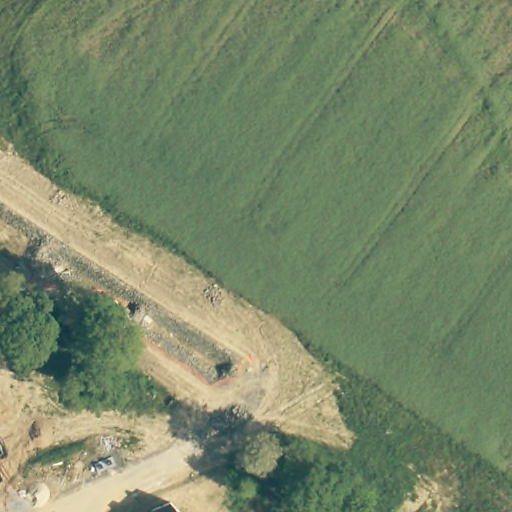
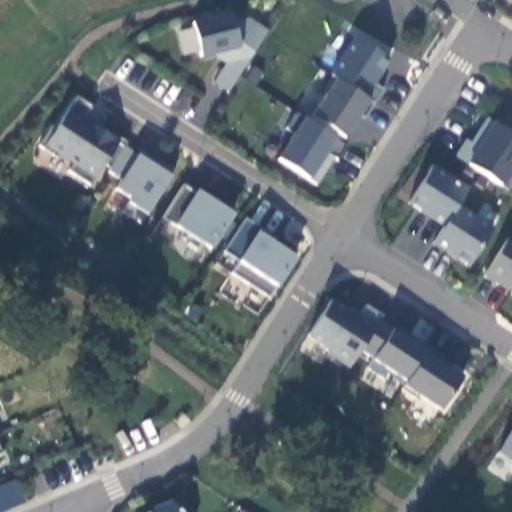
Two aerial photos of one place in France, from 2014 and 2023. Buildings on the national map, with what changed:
new [(230,11),(233,23),(250,19),(267,31),(249,61),(227,94),(212,84),(226,64),(213,56),(200,59),(191,21),(230,11)]
new [(335,79),(331,72),(354,37),(390,61),(374,85),(383,91),(364,120),(358,116),(345,139),(311,116),(335,79)]
new [(91,107),(86,116),(127,143),(110,170),(101,165),(90,185),(68,172),(72,165),(57,156),(56,159),(38,146),(50,127),(55,130),(70,109),(77,99),(91,107)]
new [(294,134),(285,128),(296,112),(304,118),(335,138),(346,145),(337,160),(334,158),(317,185),(308,180),(277,160),(294,134)]
new [(470,143),(488,118),(495,122),(512,134),(512,171),(511,172),(512,172),(512,184),(507,190),(502,187),(468,164),(454,156),(465,140),(470,143)]
new [(146,214),(137,224),(119,212),(126,202),(129,199),(114,189),(119,181),(108,175),(110,170),(124,147),(135,155),(139,150),(157,163),(159,160),(176,171),(146,214)]
new [(469,187),(457,205),(496,230),(470,268),(433,245),(445,226),(408,204),(434,165),(469,187)]
new [(194,194),(197,190),(235,214),(212,250),(174,225),(162,217),(183,185),(194,194)]
new [(244,219),(273,236),(270,241),(296,259),(278,285),(270,296),(233,274),(240,263),(237,261),(224,251),(244,219)]
new [(512,241),(512,289),(510,287),(507,292),(483,276),(508,239),(512,241)]
new [(359,316),(366,305),(384,317),(380,322),(392,330),(463,375),(440,411),(401,386),(404,382),(371,360),(358,352),(350,365),(307,337),(332,299),(359,316)]
new [(512,464),(497,454),(512,433),(512,464)]
unchanged [(1,453),(0,454),(0,450),(1,453)]
new [(15,480),(25,503),(4,512),(0,512),(0,487),(15,480)]
unchanged [(151,508),(171,501),(180,512),(147,512),(151,508)]

